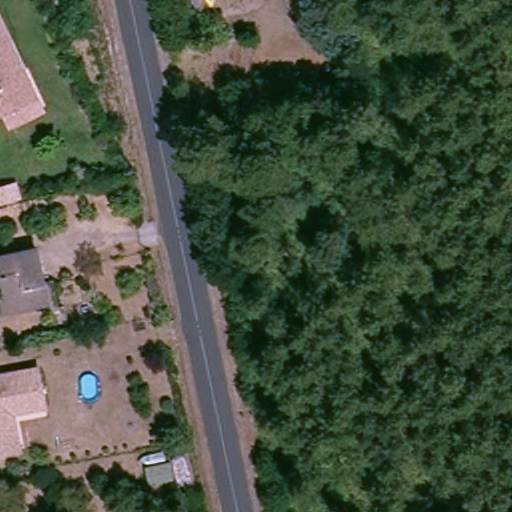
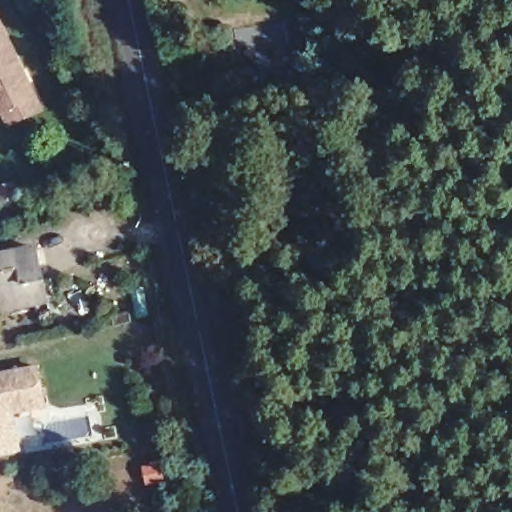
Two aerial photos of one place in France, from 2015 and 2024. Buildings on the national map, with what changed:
unchanged [(39,96),(0,116),(0,20),(39,96)]
unchanged [(0,202),(0,186),(16,181),(21,198),(5,202),(1,204),(0,202)]
unchanged [(1,313),(0,308),(0,255),(36,247),(48,303),(1,313)]
unchanged [(3,446),(0,447),(0,369),(30,362),(38,400),(5,407),(13,444),(3,446)]

